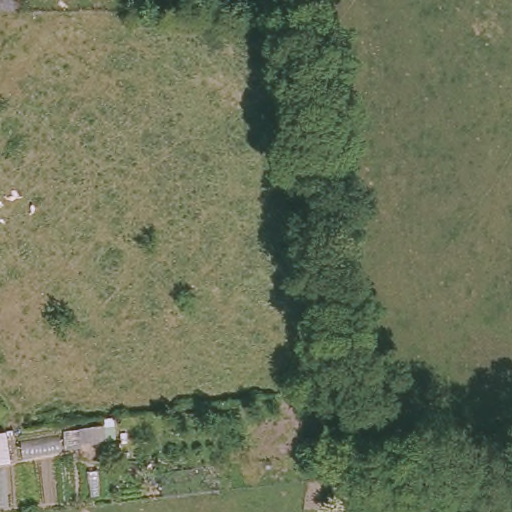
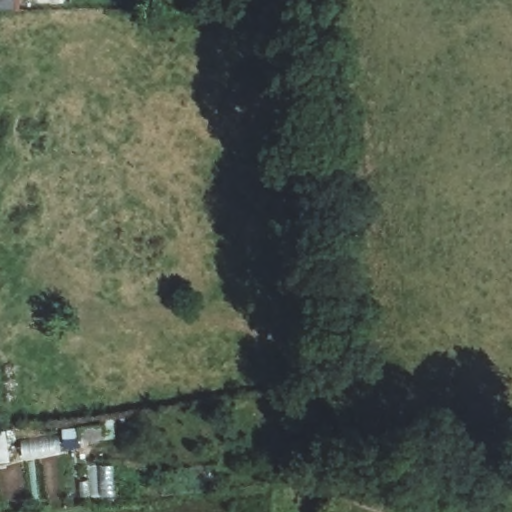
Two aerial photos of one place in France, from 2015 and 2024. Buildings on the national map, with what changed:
unchanged [(0,13),(0,0),(25,0),(25,14),(0,13)]

